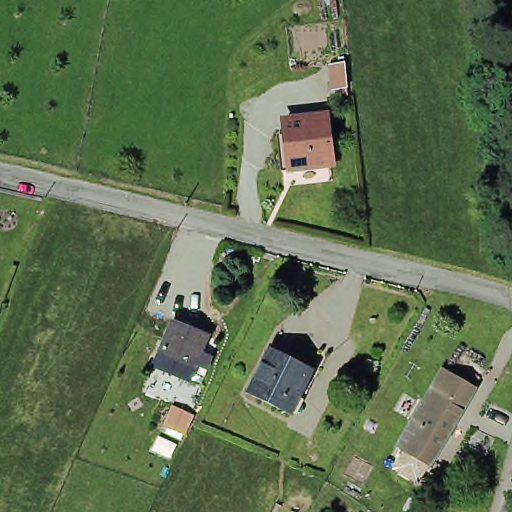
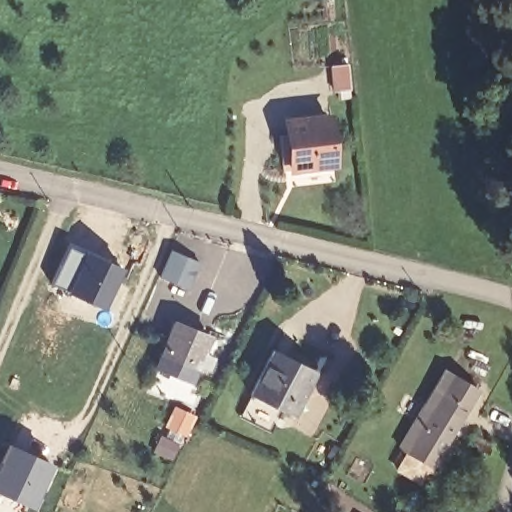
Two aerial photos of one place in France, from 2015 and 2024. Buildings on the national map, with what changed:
unchanged [(348,89),(333,91),(330,65),(346,64),(348,89)]
unchanged [(295,118),(333,116),(338,165),(300,168),(297,169),(291,169),(287,134),(293,134),(297,134),(295,118)]
new [(188,289),(158,277),(170,249),(200,262),(188,289)]
new [(125,266),(105,309),(67,292),(85,250),(125,266)]
unchanged [(163,362),(170,344),(180,319),(213,331),(203,358),(197,374),(163,362)]
unchanged [(320,369),(299,412),(292,409),(256,391),(276,348),(315,366),(320,369)]
unchanged [(417,439),(407,433),(438,389),(443,392),(462,361),(485,375),(467,407),(440,453),(437,451),(427,469),(406,457),(417,439)]
unchanged [(185,437),(165,427),(178,407),(197,416),(185,437)]
new [(183,444),(175,463),(152,454),(160,434),(183,444)]
new [(53,461),(35,508),(0,492),(0,468),(12,444),(53,461)]

